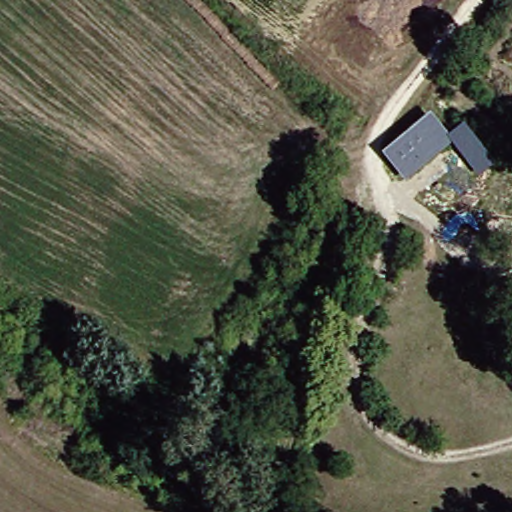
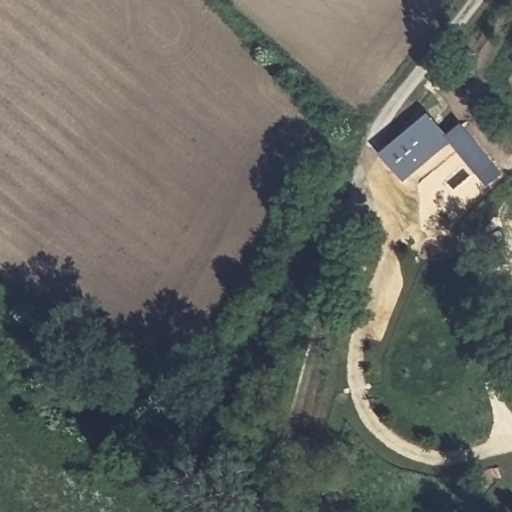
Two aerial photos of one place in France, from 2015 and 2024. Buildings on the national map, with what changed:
unchanged [(491,167),(474,183),(445,150),(465,135),(491,167)]
unchanged [(385,161),(410,137),(430,160),(400,187),(383,169),(385,161)]

